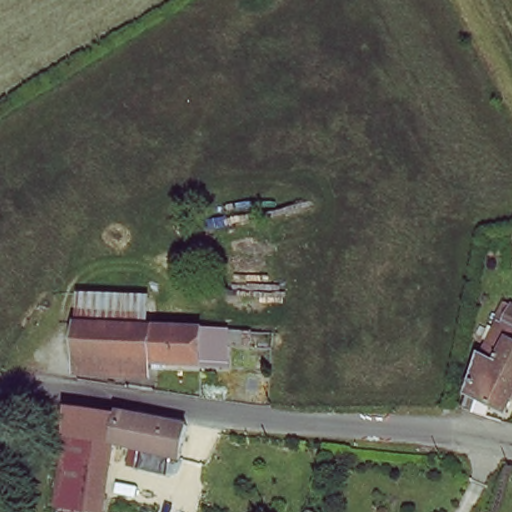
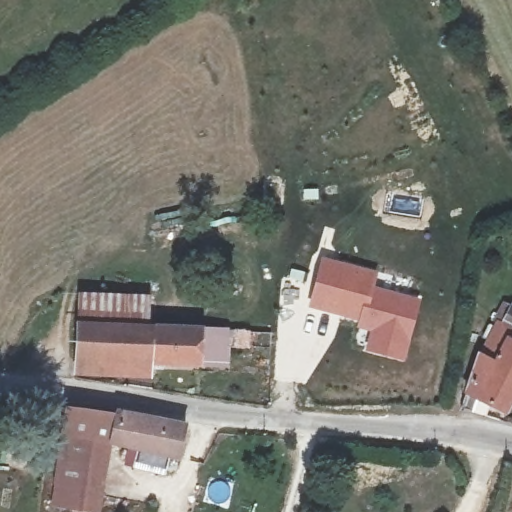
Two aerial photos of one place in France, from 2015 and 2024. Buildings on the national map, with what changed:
new [(322,256),(376,272),(372,284),(419,300),(403,360),(366,350),(370,331),(356,327),(358,322),(309,306),(322,256)]
unchanged [(78,355),(69,350),(76,296),(148,293),(149,321),(246,331),(246,347),(227,348),(225,363),(151,367),(151,383),(77,376),(78,355)]
unchanged [(512,325),(512,323),(512,408),(509,413),(466,393),(483,360),(487,362),(491,355),(482,350),(497,317),(498,318),(512,325)]
unchanged [(67,403),(77,405),(188,420),(186,429),(179,455),(93,445),(61,441),(67,403)]
unchanged [(61,441),(93,445),(89,487),(88,494),(56,492),(58,480),(61,441)]
new [(77,493),(88,494),(89,487),(93,445),(110,447),(100,512),(83,512),(53,506),(56,492),(77,493)]

